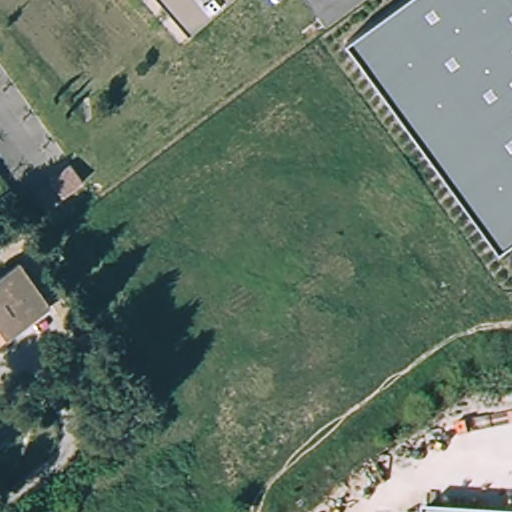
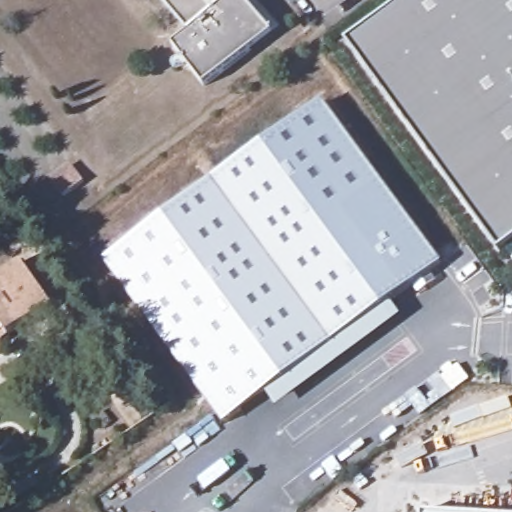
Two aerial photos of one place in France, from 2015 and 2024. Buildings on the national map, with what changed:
unchanged [(188,29),(163,0),(222,0),(188,29)]
new [(190,32),(188,29),(222,0),(257,0),(281,28),(273,34),(203,87),(172,47),(190,32)]
unchanged [(512,241),(497,251),(343,42),(401,0),(512,0),(512,241)]
new [(323,101),(442,263),(430,272),(436,282),(419,294),(414,286),(391,302),(401,317),(277,409),(267,394),(223,426),(103,263),(323,101)]
unchanged [(12,260),(46,307),(0,341),(0,269),(12,260)]
new [(454,360),(469,380),(430,409),(416,389),(454,360)]

